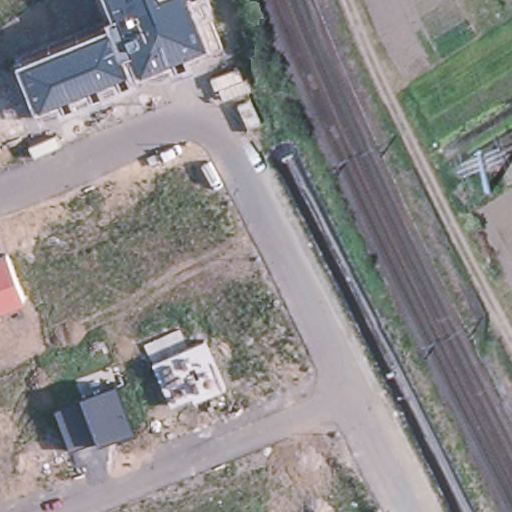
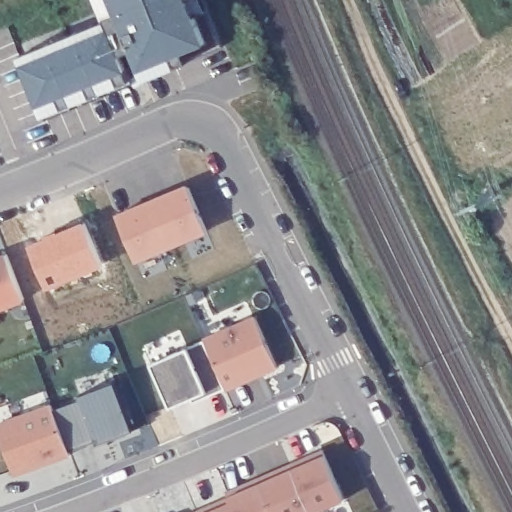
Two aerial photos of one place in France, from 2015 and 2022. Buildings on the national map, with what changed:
new [(132,72),(119,41),(120,40),(107,9),(103,0),(116,0),(144,68),(132,72)]
unchanged [(144,68),(116,0),(207,0),(222,36),(144,68)]
new [(45,109),(19,45),(107,9),(120,40),(119,41),(132,72),(45,109)]
new [(132,210),(130,208),(172,190),(173,192),(187,186),(206,230),(159,250),(135,260),(117,216),(132,210)]
new [(82,226),(99,270),(43,292),(27,250),(82,226)]
unchanged [(0,308),(0,255),(5,253),(23,298),(0,308)]
new [(279,366),(227,390),(227,386),(225,387),(204,340),(203,336),(255,313),(279,366)]
unchanged [(191,396),(170,406),(151,363),(204,340),(225,387),(224,387),(193,401),(191,396)]
unchanged [(97,443),(95,441),(69,451),(53,409),(80,398),(78,394),(80,393),(113,381),(114,381),(132,430),(131,430),(98,443),(97,443)]
new [(15,475),(0,434),(0,422),(52,403),(54,409),(69,451),(70,456),(15,475)]
new [(230,500),(227,495),(325,452),(345,500),(316,512),(202,512),(230,500)]

